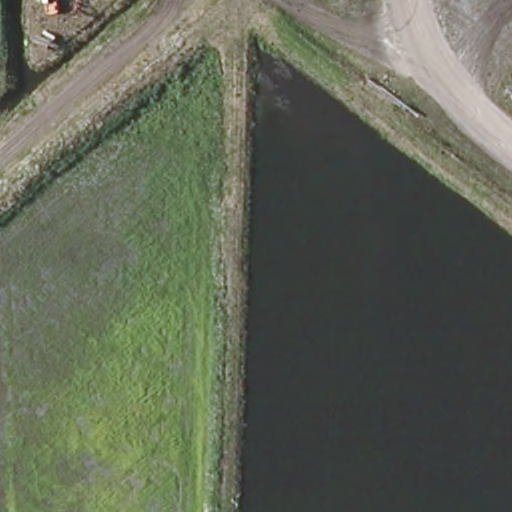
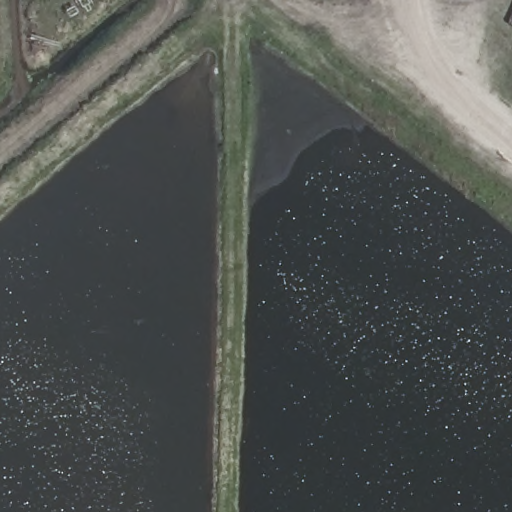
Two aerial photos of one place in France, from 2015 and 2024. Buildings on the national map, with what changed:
[]

